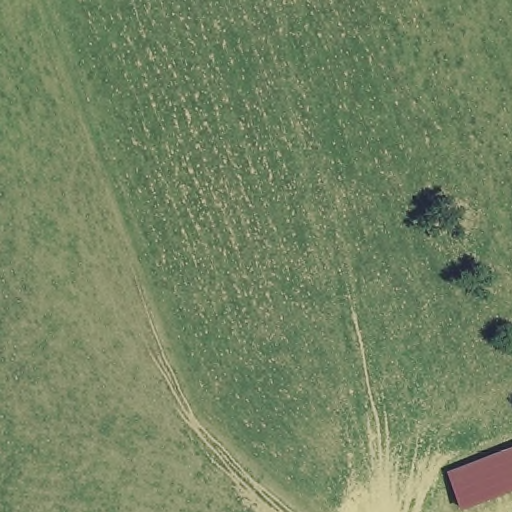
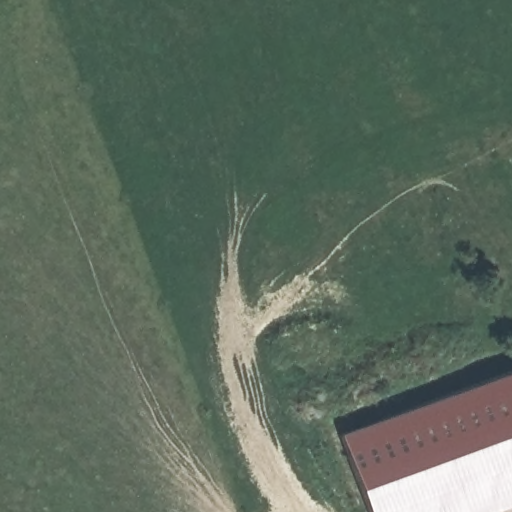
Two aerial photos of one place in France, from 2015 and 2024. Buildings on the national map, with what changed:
new [(374,512),(346,422),(512,362),(512,512),(374,512)]
demolished [(467,509),(454,475),(512,452),(512,493),(467,509)]

